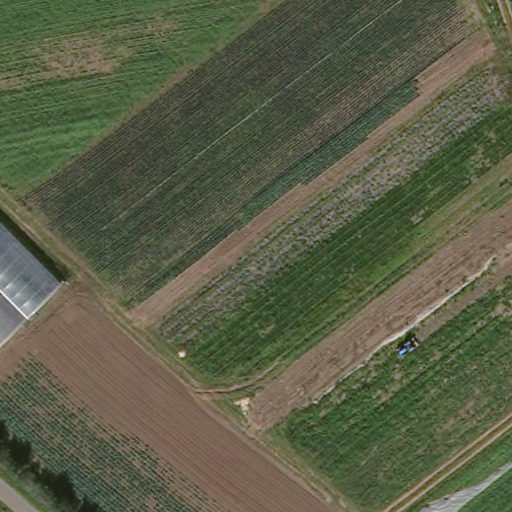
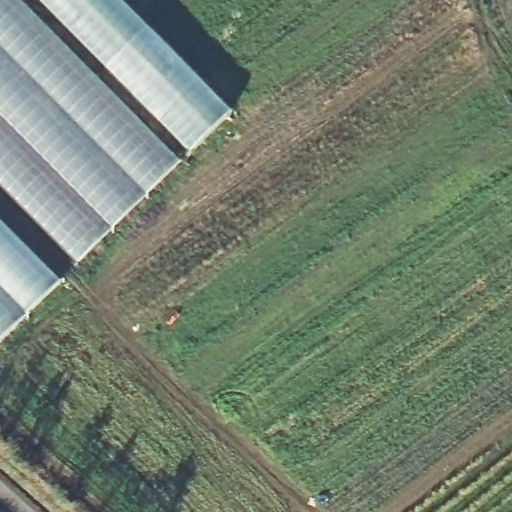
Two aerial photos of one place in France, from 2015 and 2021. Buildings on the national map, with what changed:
new [(79,264),(0,184),(0,0),(14,0),(179,166),(79,264)]
unchanged [(0,223),(59,282),(0,343),(0,223)]

